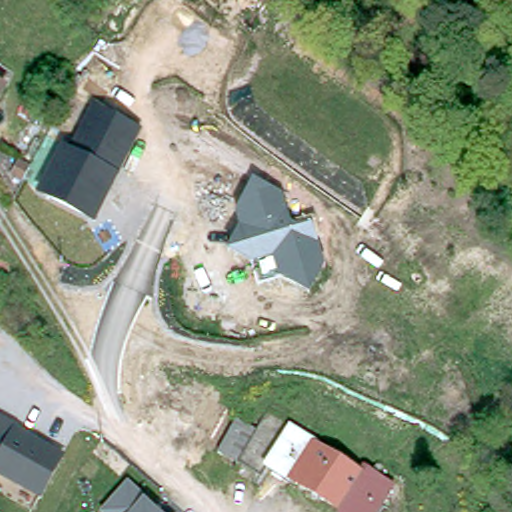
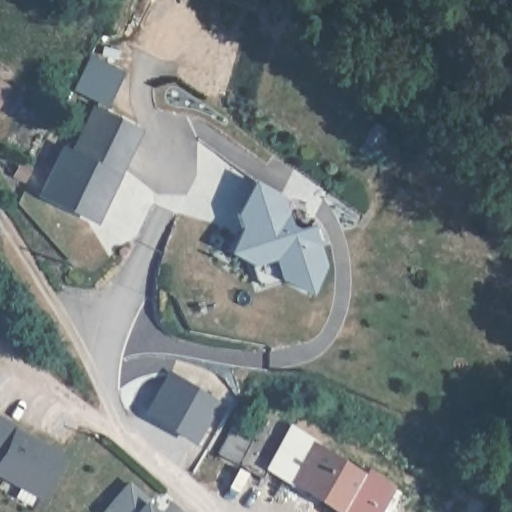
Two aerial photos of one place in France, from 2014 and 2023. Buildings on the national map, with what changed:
new [(91,53),(123,71),(104,106),(95,100),(70,90),(91,53)]
unchanged [(0,94),(0,81),(5,84),(0,94)]
unchanged [(141,130),(94,222),(34,193),(60,141),(71,147),(95,100),(141,130)]
unchanged [(282,196),(290,228),(315,222),(324,270),(309,294),(282,280),(261,285),(256,266),(224,250),(236,225),(233,214),(253,175),(282,196)]
new [(220,401),(193,443),(143,412),(169,368),(220,401)]
demolished [(177,382),(222,412),(186,462),(143,432),(177,382)]
unchanged [(18,428),(65,455),(40,501),(0,480),(0,414),(18,423),(18,428)]
unchanged [(239,420),(263,432),(274,417),(397,487),(381,512),(339,512),(340,511),(268,467),(261,478),(219,453),(239,420)]
unchanged [(146,494),(142,499),(158,512),(103,512),(128,482),(146,494)]

